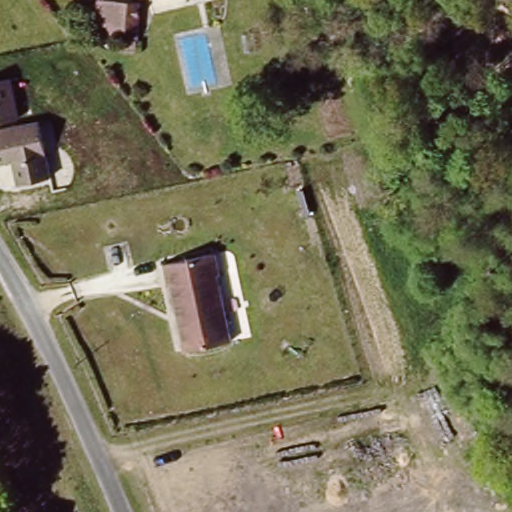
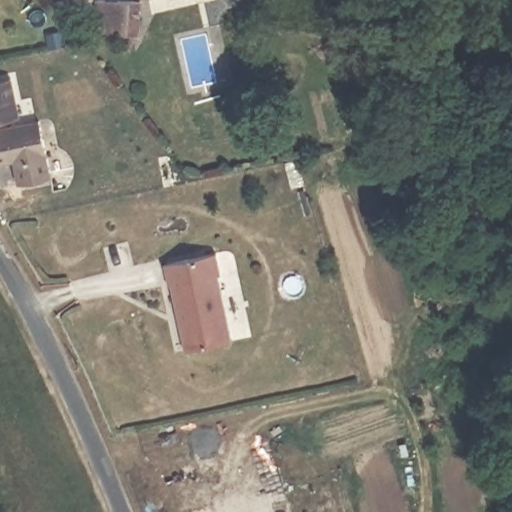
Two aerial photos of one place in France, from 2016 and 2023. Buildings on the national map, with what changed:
unchanged [(124,49),(125,34),(96,32),(97,0),(126,0),(140,0),(138,50),(124,49)]
unchanged [(11,76),(19,116),(0,120),(0,79),(11,76)]
unchanged [(39,119),(50,175),(18,182),(13,160),(0,163),(0,128),(39,119)]
unchanged [(181,347),(166,263),(213,249),(231,336),(181,347)]

